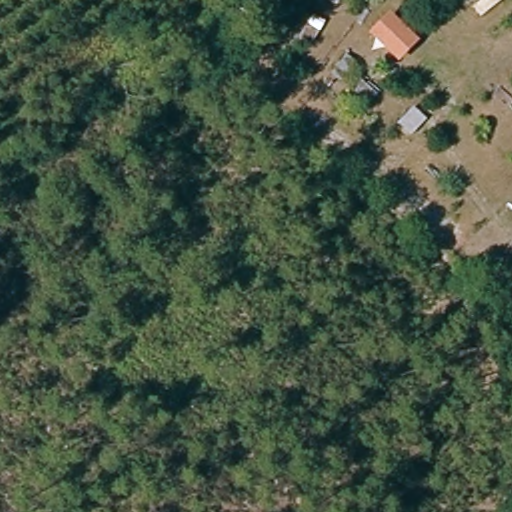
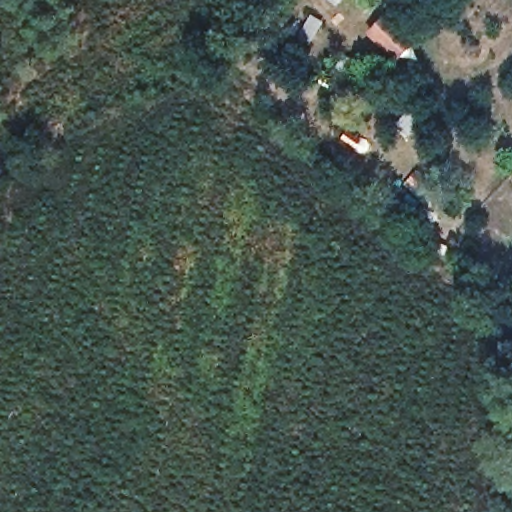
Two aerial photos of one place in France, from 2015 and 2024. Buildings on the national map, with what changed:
unchanged [(420,39),(398,63),(368,34),(391,11),(420,39)]

